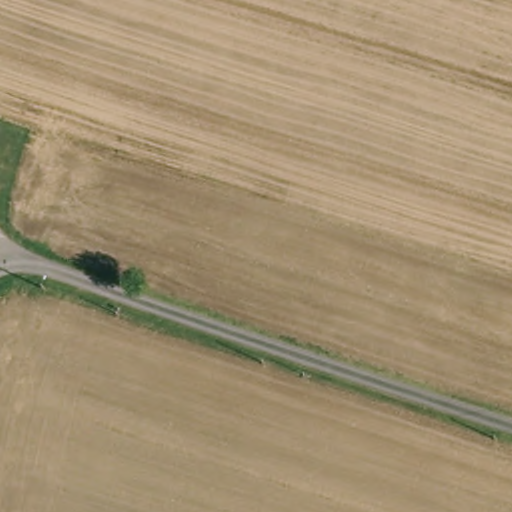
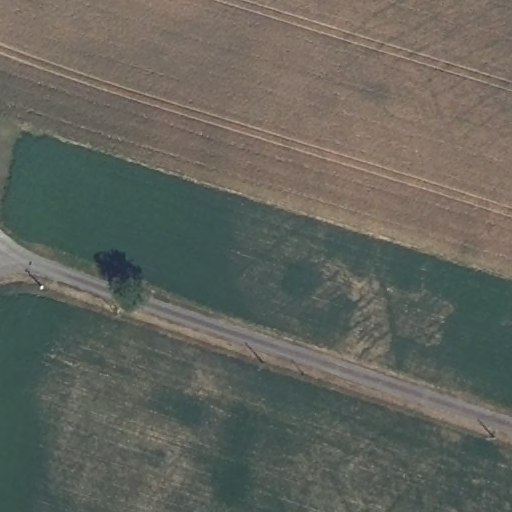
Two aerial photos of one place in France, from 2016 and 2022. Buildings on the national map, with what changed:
[]

